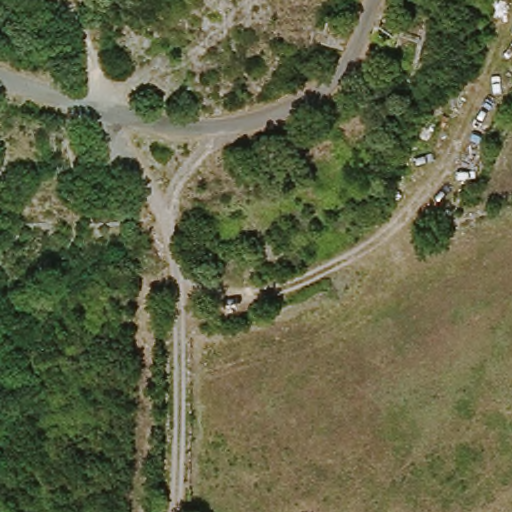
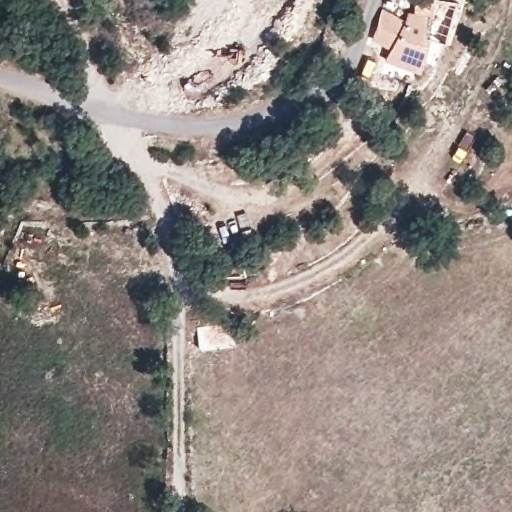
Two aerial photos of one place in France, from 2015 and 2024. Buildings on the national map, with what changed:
new [(383,57),(389,46),(371,37),(381,5),(404,16),(406,9),(413,9),(414,0),(456,0),(445,37),(427,33),(418,69),(383,57)]
unchanged [(358,40),(336,36),(340,12),(362,16),(358,40)]

